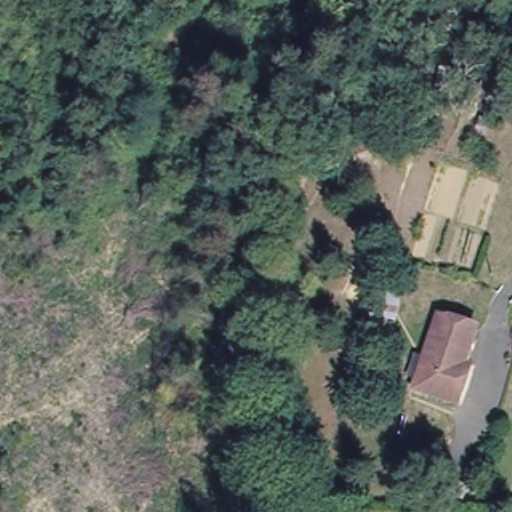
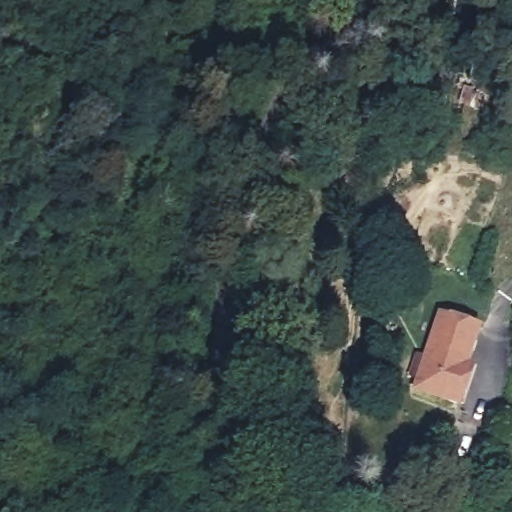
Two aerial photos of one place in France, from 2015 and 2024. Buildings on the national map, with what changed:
unchanged [(471,328),(448,399),(409,387),(433,315),(471,328)]

